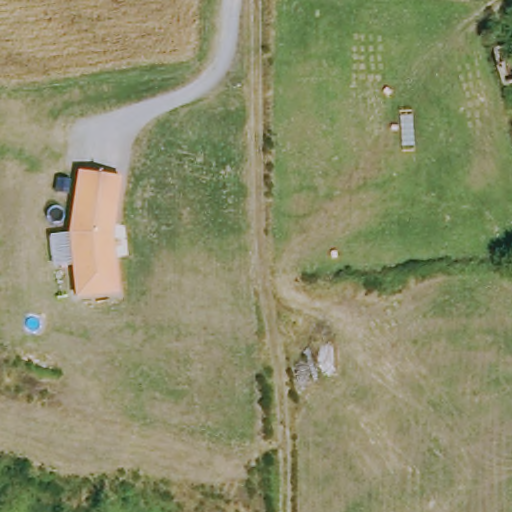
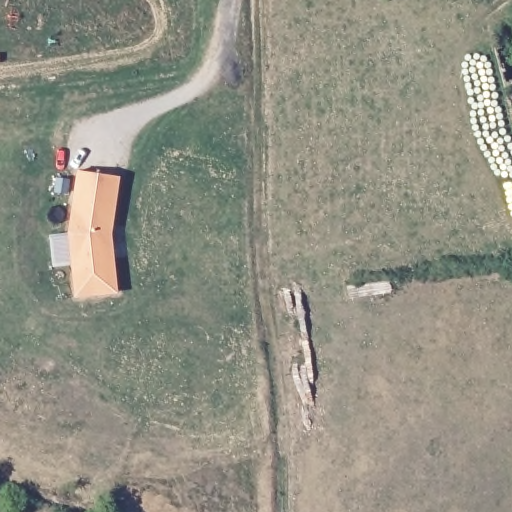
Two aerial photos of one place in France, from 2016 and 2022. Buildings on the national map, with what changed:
unchanged [(68,233),(77,171),(119,177),(111,236),(118,292),(75,297),(68,233)]

